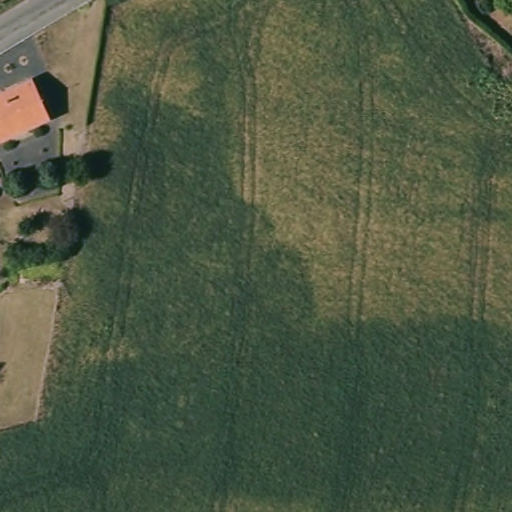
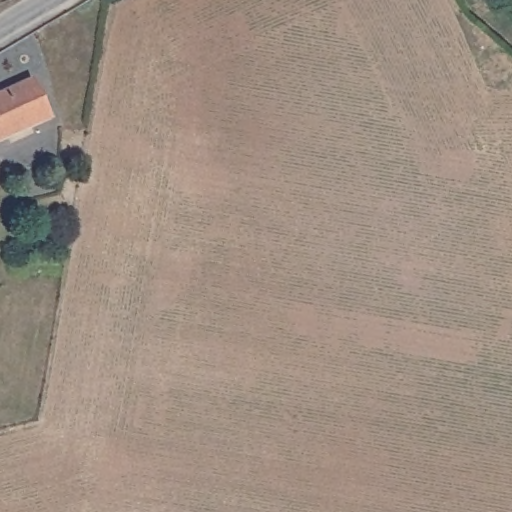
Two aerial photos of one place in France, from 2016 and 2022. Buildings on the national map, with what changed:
unchanged [(51,120),(0,142),(0,98),(36,82),(51,120)]
unchanged [(0,149),(0,147),(1,149),(0,149)]

